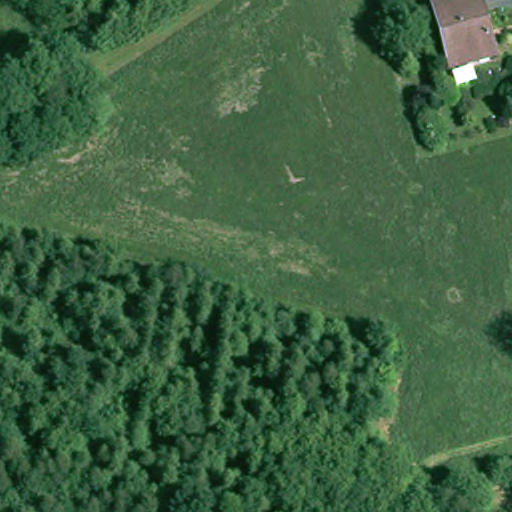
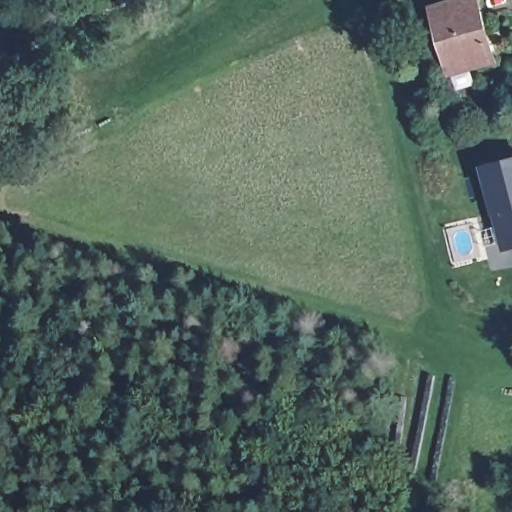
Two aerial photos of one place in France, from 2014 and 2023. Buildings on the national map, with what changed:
unchanged [(470,0),(483,0),(497,60),(455,70),(440,8),(470,0)]
new [(504,252),(495,214),(482,166),(512,159),(512,249),(504,252)]

